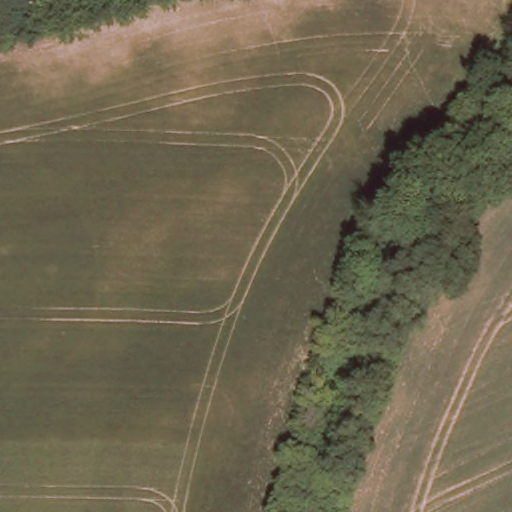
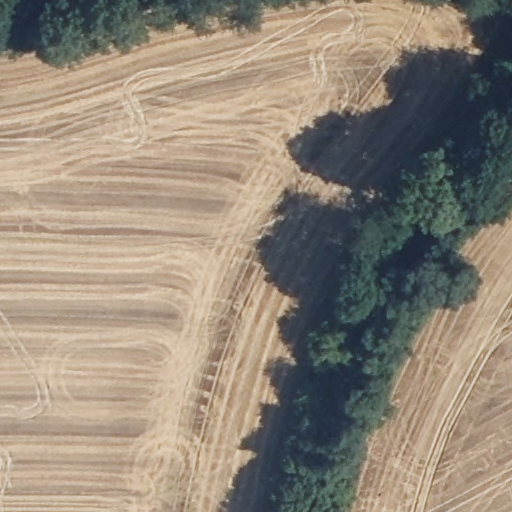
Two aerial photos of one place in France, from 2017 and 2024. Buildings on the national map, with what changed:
[]

